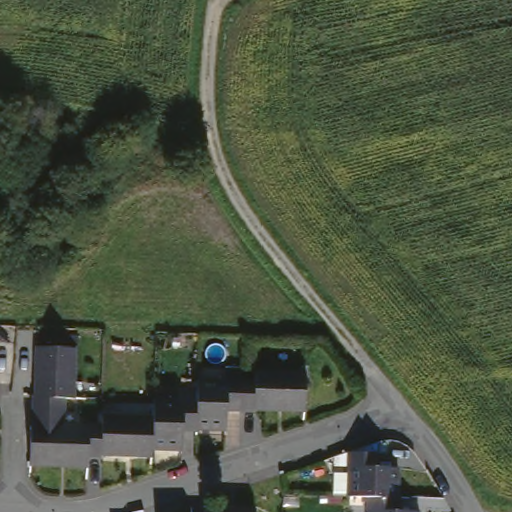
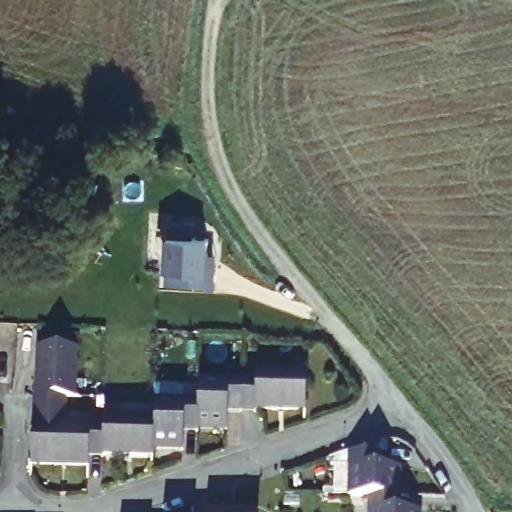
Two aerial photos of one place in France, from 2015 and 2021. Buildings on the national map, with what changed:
new [(166,268),(168,237),(168,221),(195,222),(195,237),(209,238),(208,253),(216,253),(214,289),(166,287),(166,268)]
unchanged [(178,396),(178,393),(193,394),(193,374),(223,377),(223,374),(251,374),(251,367),(302,369),(301,404),(250,404),(250,407),(222,406),(221,421),(192,420),(192,426),(178,425),(177,442),(147,441),(147,450),(97,449),(97,452),(84,451),(83,461),(26,459),(28,419),(29,391),(31,391),(33,342),(71,343),(70,392),(63,392),(62,407),(58,407),(58,419),(85,421),(85,419),(98,419),(98,410),(148,412),(148,394),(178,396)]
unchanged [(368,512),(368,497),(351,496),(352,467),(349,467),(350,453),(380,454),(379,467),(399,468),(398,498),(400,498),(400,509),(420,510),(420,512),(372,512),(368,512)]
unchanged [(205,509),(256,511),(256,512),(205,512),(205,509)]

